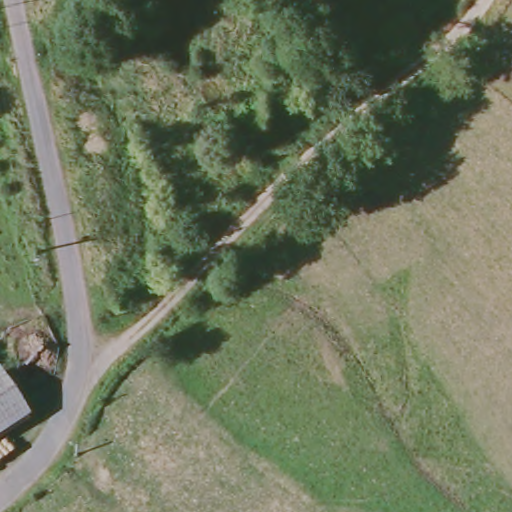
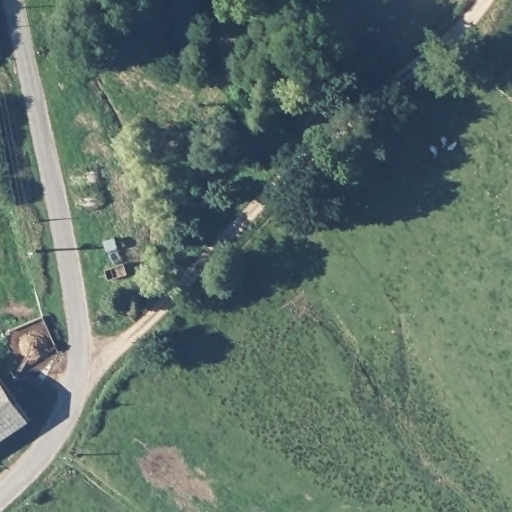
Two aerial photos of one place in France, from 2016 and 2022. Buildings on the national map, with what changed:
unchanged [(0,435),(0,402),(14,425),(0,435)]

